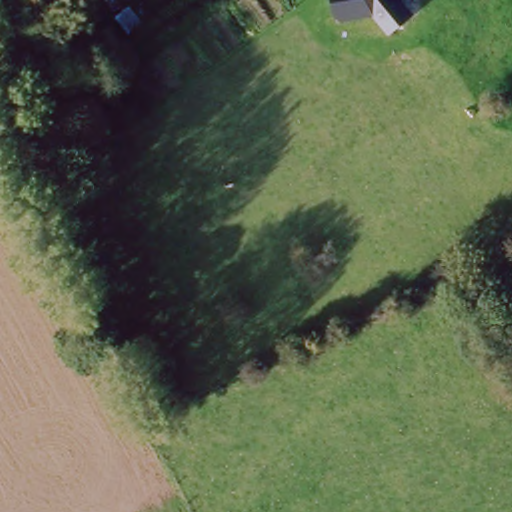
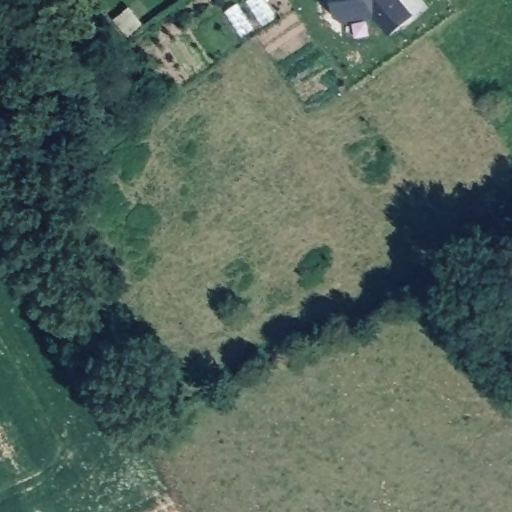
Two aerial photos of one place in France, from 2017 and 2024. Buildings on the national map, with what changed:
unchanged [(389,36),(373,16),(339,21),(334,17),(331,0),(404,0),(416,14),(389,36)]

